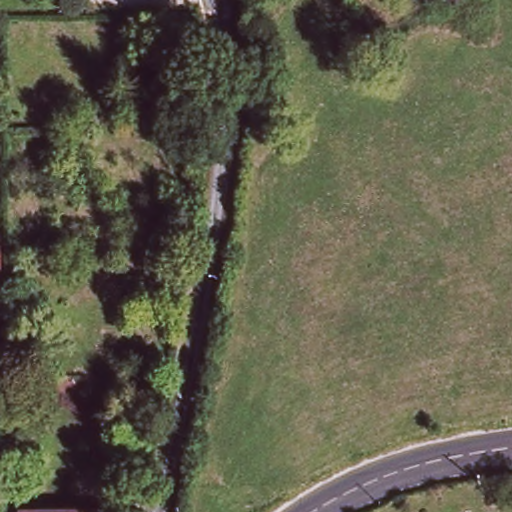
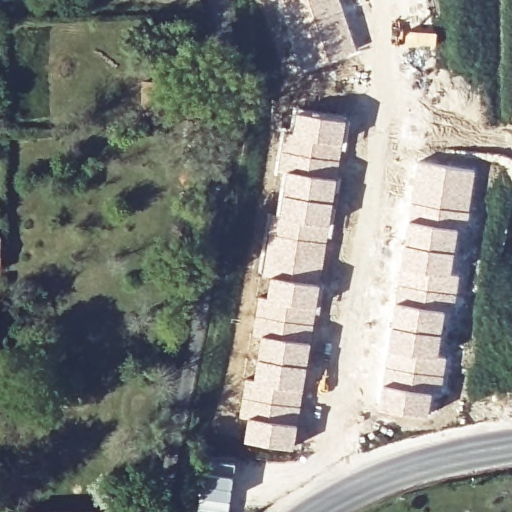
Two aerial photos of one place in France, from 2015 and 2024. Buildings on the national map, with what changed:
new [(288,73),(279,33),(282,32),(273,0),(342,0),(358,50),(288,73)]
unchanged [(174,122),(139,120),(144,79),(176,81),(174,122)]
new [(282,129),(289,130),(292,108),(348,116),(339,176),(281,171),(275,170),(282,129)]
new [(417,160),(476,168),(468,220),(461,219),(459,226),(408,219),(417,160)]
new [(269,212),(275,213),(281,171),(339,176),(332,226),(321,282),(269,276),(259,274),(269,212)]
new [(408,219),(459,226),(452,271),(460,272),(456,303),(448,302),(447,308),(394,300),(408,219)]
unchanged [(2,274),(0,274),(0,237),(2,237),(2,274)]
new [(258,294),(266,295),(269,276),(321,282),(309,363),(254,355),(257,335),(252,335),(258,294)]
new [(394,300),(447,308),(439,354),(387,347),(394,300)]
new [(387,347),(439,354),(447,355),(442,385),(435,383),(434,390),(382,383),(387,347)]
new [(244,377),(251,378),(254,355),(309,363),(294,448),(243,440),(246,417),(239,416),(244,377)]
new [(382,383),(434,390),(429,415),(377,408),(382,383)]
new [(203,456),(236,460),(229,512),(196,512),(203,456)]

